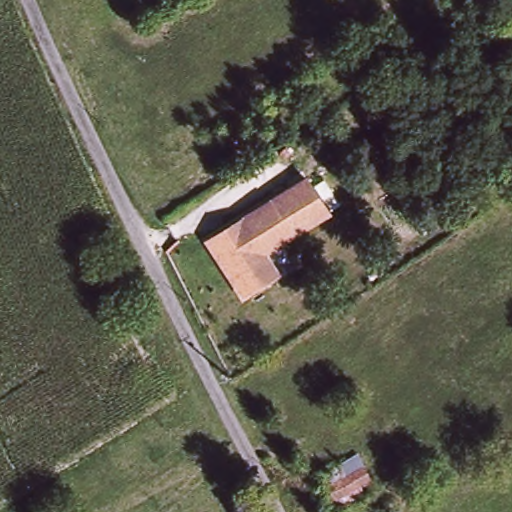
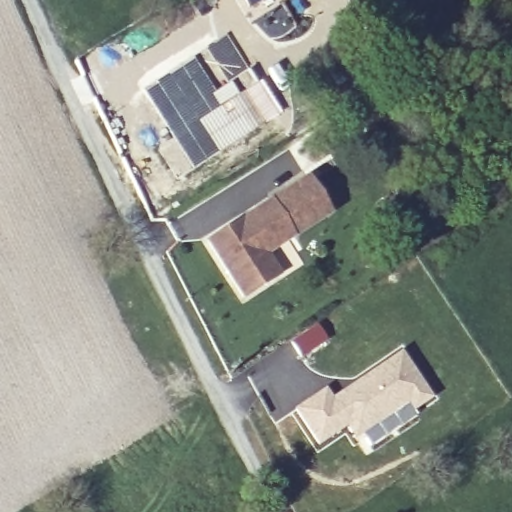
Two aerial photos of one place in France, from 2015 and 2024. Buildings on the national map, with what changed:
new [(252,11),(245,0),(267,0),(252,11)]
new [(283,0),(298,28),(272,40),(253,19),(283,0)]
new [(194,55),(206,46),(227,33),(249,67),(283,112),(247,136),(193,169),(179,178),(158,148),(171,137),(142,89),(194,55)]
unchanged [(246,297),(209,242),(307,174),(331,209),(269,253),(282,274),(246,297)]
new [(330,401),(347,389),(356,383),(397,355),(427,399),(411,411),(405,402),(353,438),(345,426),(318,444),(295,411),(323,391),(330,401)]
demolished [(335,512),(322,476),(365,457),(382,489),(337,512),(335,512)]

